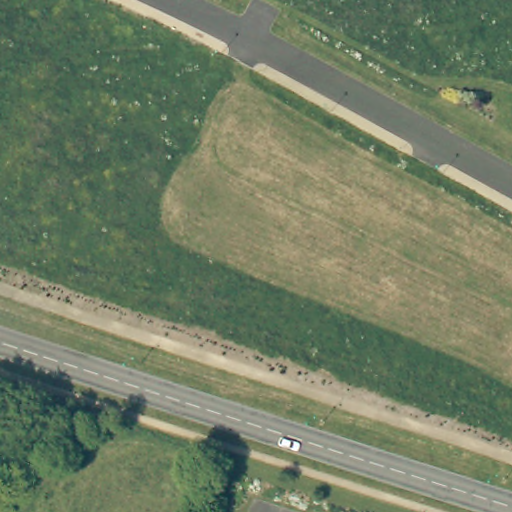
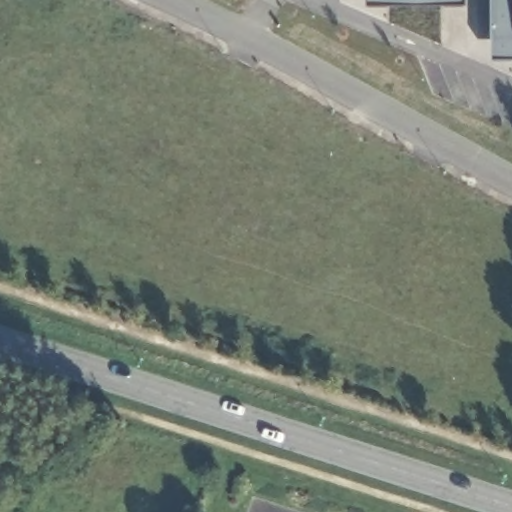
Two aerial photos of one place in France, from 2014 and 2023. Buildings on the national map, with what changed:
new [(365,4),(365,0),(465,0),(466,3),(365,4)]
new [(491,59),(491,0),(512,0),(512,58),(491,59)]

